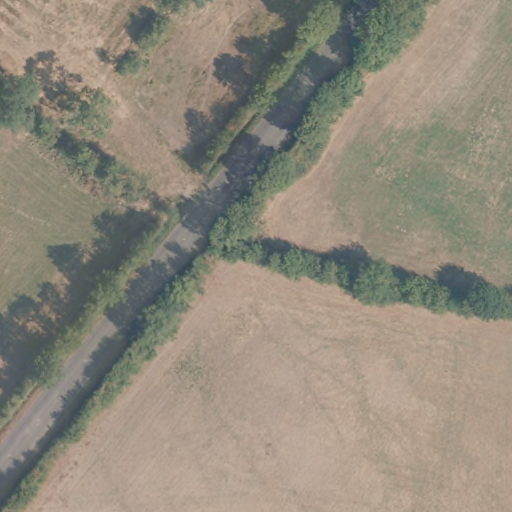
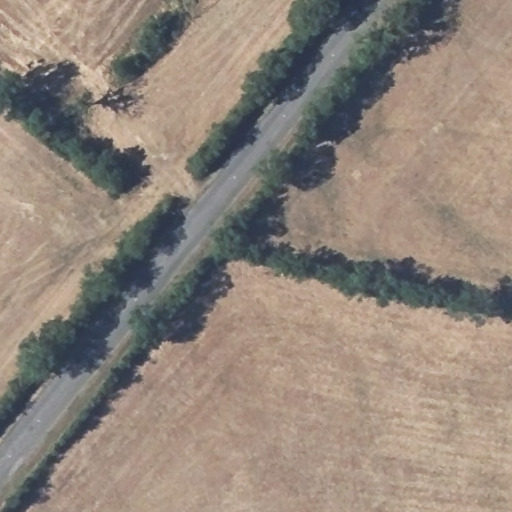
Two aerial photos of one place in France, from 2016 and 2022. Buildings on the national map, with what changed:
[]

